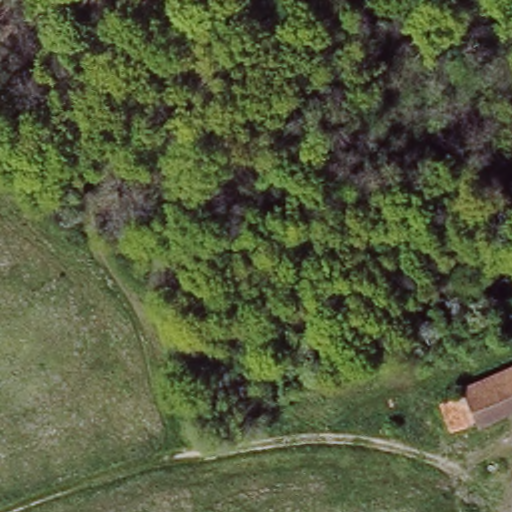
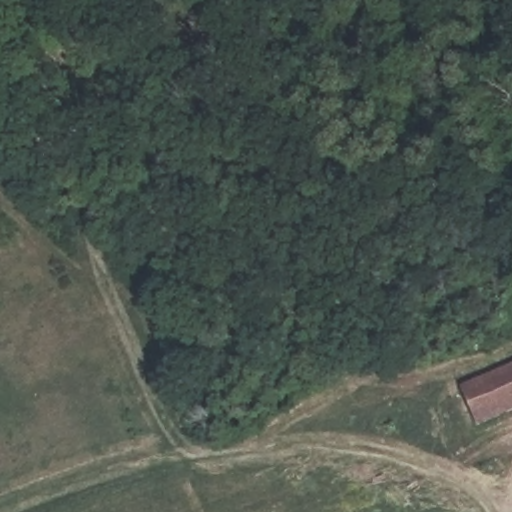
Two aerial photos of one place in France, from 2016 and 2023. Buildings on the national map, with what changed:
unchanged [(497,411),(504,432),(481,440),(460,375),(512,355),(512,405),(497,411)]
unchanged [(481,440),(457,449),(436,384),(460,375),(481,440)]

